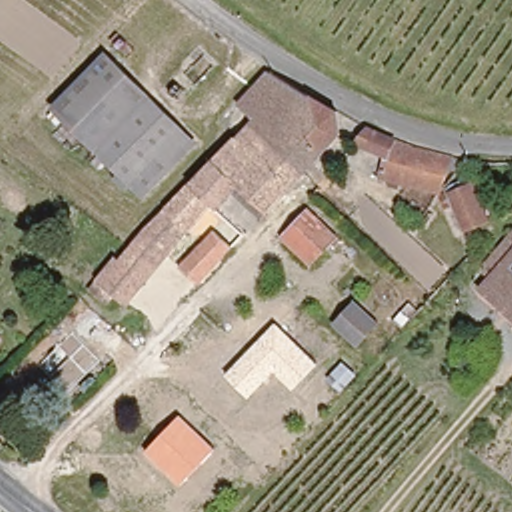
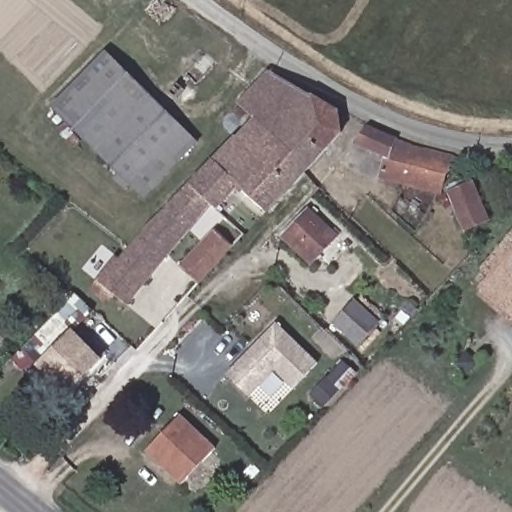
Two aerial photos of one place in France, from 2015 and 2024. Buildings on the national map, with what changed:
unchanged [(57,106),(111,54),(182,131),(127,182),(57,106)]
unchanged [(110,290),(106,295),(99,288),(92,295),(84,287),(115,256),(127,243),(184,185),(185,185),(211,159),(230,139),(236,132),(222,120),(226,115),(273,69),(300,87),(350,123),(301,175),(265,212),(256,203),(237,185),(213,210),(209,206),(123,303),(110,290)]
unchanged [(182,131),(196,145),(141,197),(127,182),(182,131)]
unchanged [(367,132),(452,159),(445,175),(390,154),(359,141),(367,132)]
unchanged [(436,196),(381,175),(390,154),(445,175),(436,196)]
unchanged [(487,226),(468,235),(452,190),(470,181),(487,226)]
unchanged [(314,262),(283,234),(306,211),(323,227),(321,230),(333,242),(314,262)]
unchanged [(512,235),(512,314),(472,281),(512,235)]
unchanged [(194,286),(177,270),(207,237),(225,254),(194,286)]
unchanged [(333,323),(354,299),(378,321),(357,343),(333,323)]
unchanged [(225,375),(276,322),(318,364),(293,390),(274,370),(249,397),(225,375)]
new [(65,396),(36,365),(72,329),(102,360),(65,396)]
unchanged [(338,355),(352,367),(346,374),(337,383),(323,371),(338,355)]
unchanged [(179,485),(145,451),(180,415),(216,449),(179,485)]

